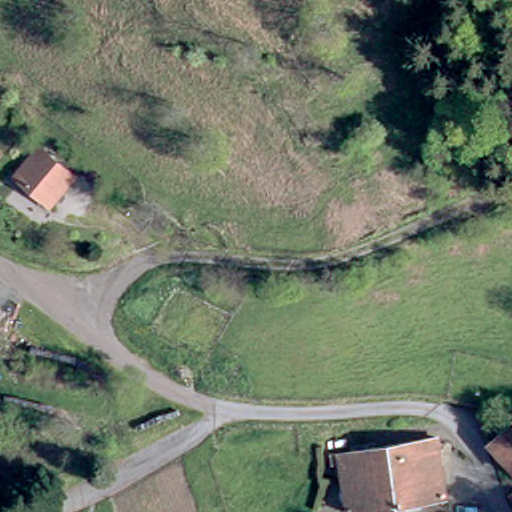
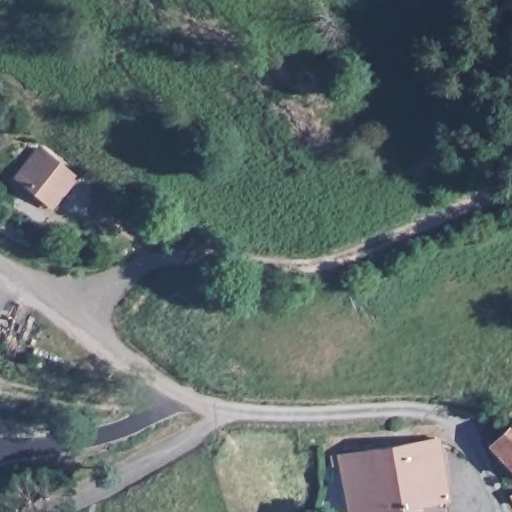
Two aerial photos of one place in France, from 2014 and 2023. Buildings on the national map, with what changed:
unchanged [(49,206),(40,200),(10,179),(32,149),(62,170),(70,175),(49,206)]
unchanged [(481,443),(506,419),(498,410),(505,402),(512,409),(512,476),(508,472),(481,443)]
unchanged [(447,498),(425,501),(426,507),(413,509),(411,503),(356,512),(350,512),(347,497),(340,499),(338,491),(346,489),(342,464),(332,465),(331,454),(437,438),(447,498)]
unchanged [(500,489),(509,482),(512,486),(512,495),(508,499),(501,492),(500,489)]

